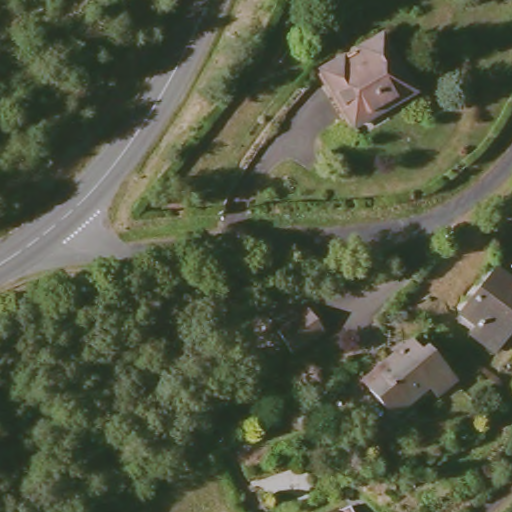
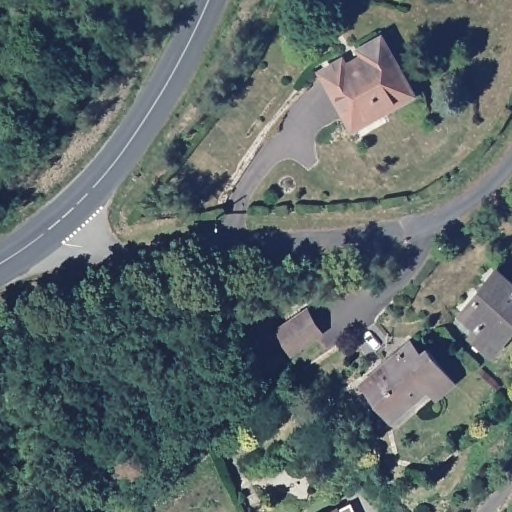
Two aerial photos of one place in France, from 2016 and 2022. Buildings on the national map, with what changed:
unchanged [(338,55),(341,61),(361,52),(357,45),(378,35),(410,91),(381,108),(378,102),(345,120),(316,67),(338,55)]
unchanged [(487,269),(512,286),(512,314),(486,350),(467,337),(475,325),(458,312),(487,269)]
unchanged [(303,344),(288,323),(315,305),(331,326),(303,344)]
unchanged [(410,333),(450,377),(432,392),(423,383),(387,414),(356,379),(410,333)]
unchanged [(343,512),(333,512),(341,508),(343,512)]

